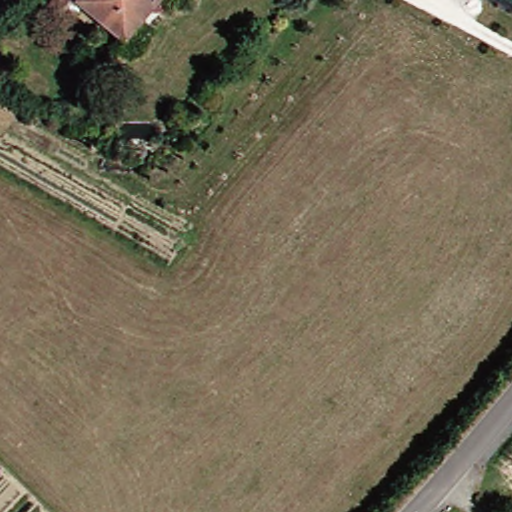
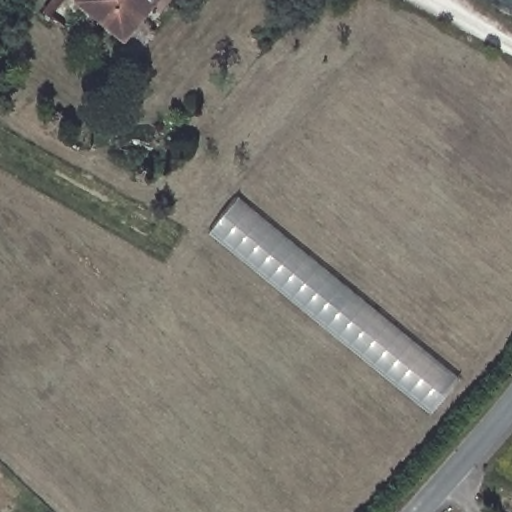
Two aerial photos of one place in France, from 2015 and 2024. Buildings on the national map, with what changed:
unchanged [(56,20),(46,11),(55,0),(158,0),(126,40),(83,5),(65,27),(56,20)]
new [(432,412),(214,231),(240,197),(458,376),(432,412)]

